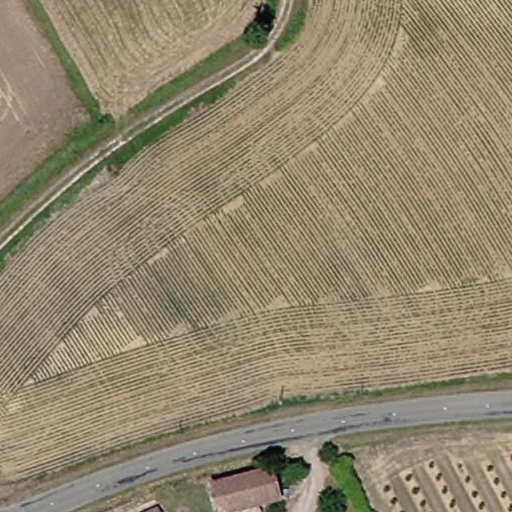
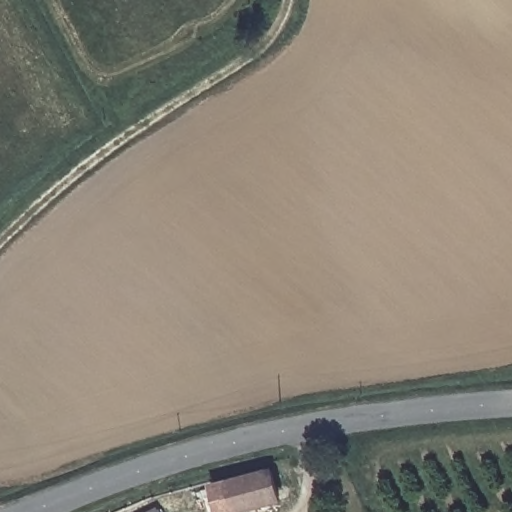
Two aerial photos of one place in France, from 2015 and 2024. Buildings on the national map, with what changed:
unchanged [(273,497),(224,512),(215,512),(208,484),(266,468),(273,497)]
unchanged [(150,508),(151,512),(141,512),(150,508)]

